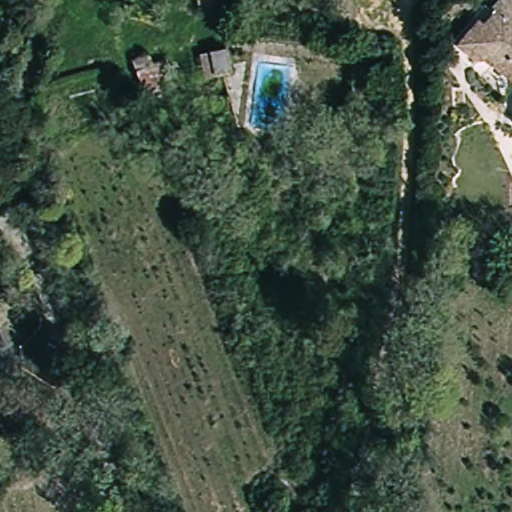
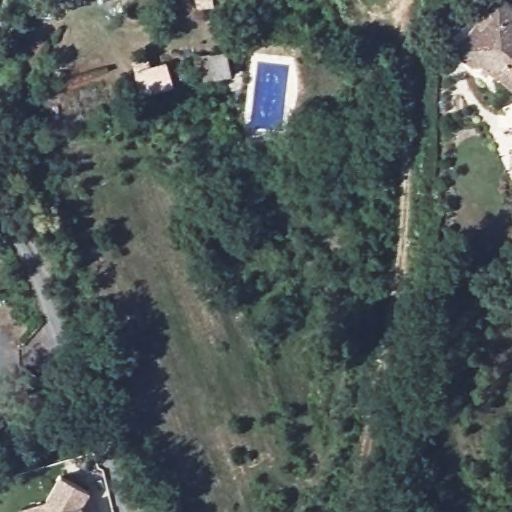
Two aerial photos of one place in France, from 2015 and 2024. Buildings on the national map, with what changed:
unchanged [(217,3),(201,6),(200,0),(216,0),(217,3)]
unchanged [(502,77),(489,64),(478,64),(460,47),(482,23),(487,28),(498,16),(495,12),(506,0),(509,0),(512,3),(512,83),(503,75),(502,77)]
unchanged [(200,55),(225,50),(230,74),(223,75),(223,76),(205,79),(200,55)]
unchanged [(139,91),(133,63),(165,57),(170,83),(139,91)]
new [(57,475),(87,492),(81,504),(84,512),(19,512),(18,506),(43,503),(57,475)]

